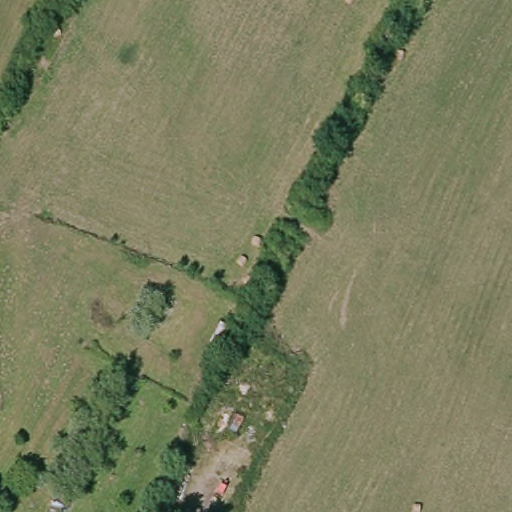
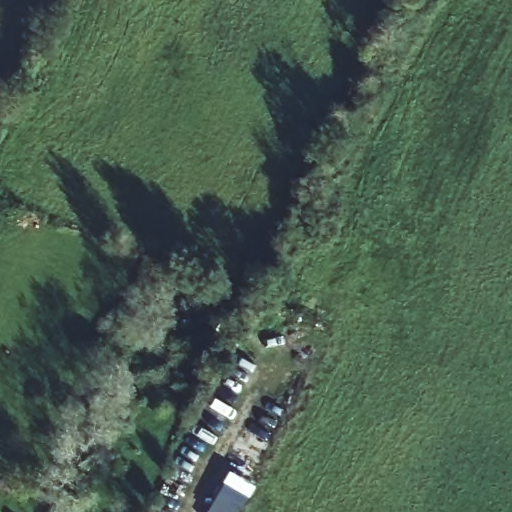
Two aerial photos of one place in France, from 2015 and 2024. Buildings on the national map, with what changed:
new [(248,484),(233,509),(236,511),(235,512),(208,512),(232,474),(248,484)]

